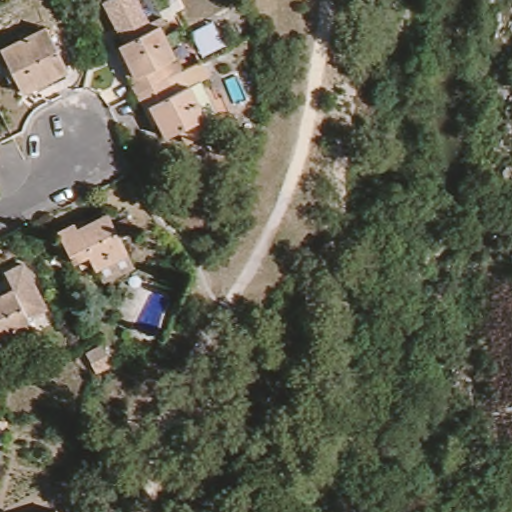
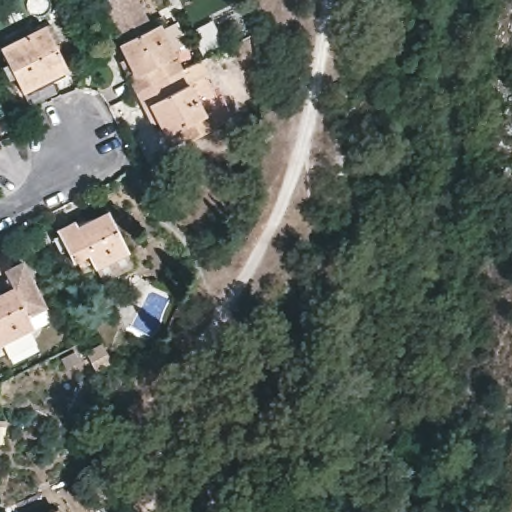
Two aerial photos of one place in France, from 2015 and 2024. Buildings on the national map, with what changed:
unchanged [(68,65),(24,87),(3,44),(46,22),(68,65)]
unchanged [(133,98),(126,84),(131,81),(116,50),(154,30),(177,76),(133,98)]
unchanged [(195,67),(207,91),(214,104),(216,102),(219,102),(228,118),(226,124),(224,127),(221,129),(206,136),(194,142),(184,147),(177,134),(162,141),(146,110),(140,112),(133,98),(177,76),(195,67)]
unchanged [(59,226),(75,218),(78,223),(108,209),(134,260),(117,268),(109,255),(95,262),(88,247),(73,255),(59,226)]
unchanged [(14,288),(6,272),(24,263),(46,308),(28,317),(33,327),(0,343),(0,295),(14,288)]
unchanged [(111,365),(96,373),(85,353),(100,345),(111,365)]
unchanged [(41,512),(56,505),(59,512),(41,512)]

